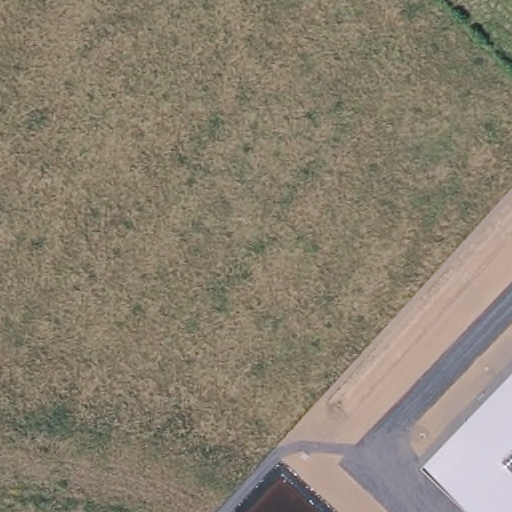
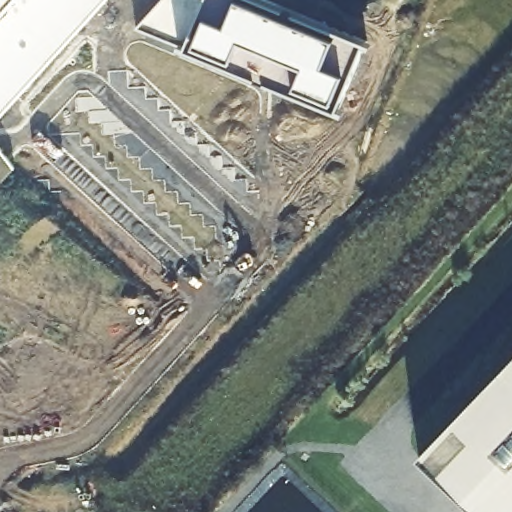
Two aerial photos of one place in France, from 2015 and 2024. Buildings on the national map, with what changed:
new [(0,0),(106,0),(0,115),(0,0)]
new [(340,109),(187,48),(189,43),(137,27),(163,0),(268,0),(368,43),(340,109)]
unchanged [(421,459),(512,363),(512,512),(475,512),(421,459)]

